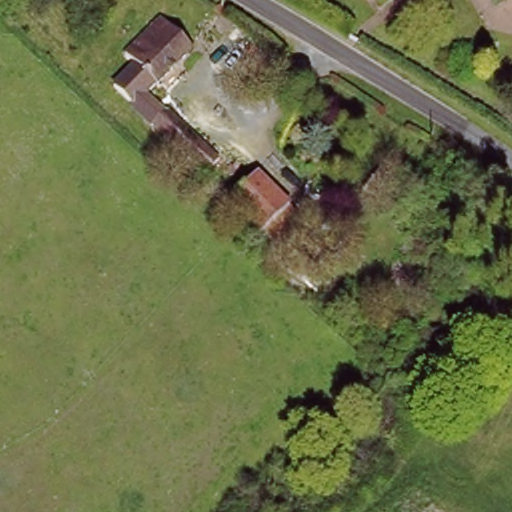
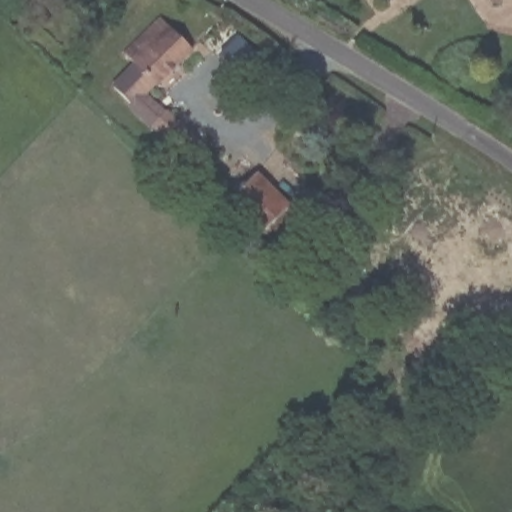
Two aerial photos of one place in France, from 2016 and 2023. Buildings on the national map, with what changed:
unchanged [(381,0),(390,0),(383,4),(381,0)]
unchanged [(493,0),(512,0),(498,8),(493,0)]
unchanged [(133,64),(123,54),(163,16),(174,26),(195,50),(152,91),(224,164),(207,182),(130,105),(110,85),(133,64)]
unchanged [(304,224),(280,249),(235,204),(258,180),(304,224)]

